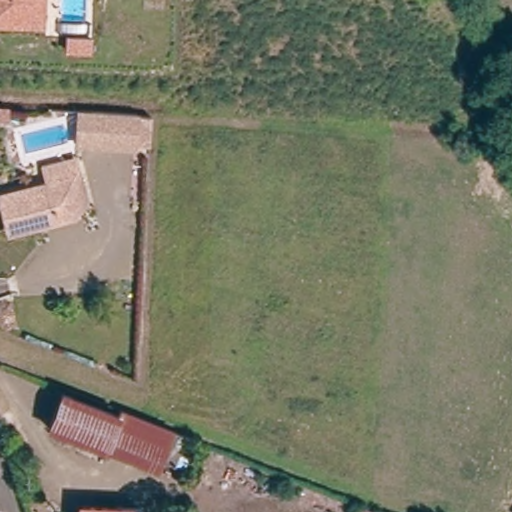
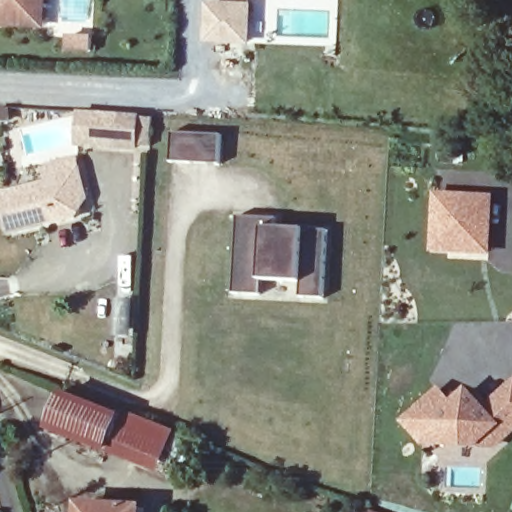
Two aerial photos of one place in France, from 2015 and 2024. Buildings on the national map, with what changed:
unchanged [(0,23),(0,0),(46,0),(45,25),(12,24),(0,23)]
new [(207,6),(247,8),(246,43),(205,41),(207,6)]
unchanged [(140,112),(139,145),(93,142),(80,141),(83,108),(95,109),(124,111),(140,112)]
new [(172,133),(222,137),(220,164),(170,161),(172,133)]
unchanged [(54,183),(50,167),(81,160),(85,176),(90,199),(86,206),(80,217),(15,232),(12,230),(4,195),(54,183)]
new [(433,192),(493,195),(491,254),(430,253),(433,192)]
new [(234,295),(237,217),(276,219),(276,226),(305,228),(326,230),(324,299),(300,298),(302,280),(260,277),(260,295),(234,295)]
new [(452,402),(467,387),(483,404),(512,378),(512,436),(496,450),(480,449),(438,446),(425,450),(400,421),(438,387),(452,402)]
unchanged [(171,433),(157,471),(48,433),(61,388),(171,433)]
unchanged [(185,440),(184,443),(194,447),(189,461),(178,457),(173,468),(161,463),(173,434),(185,440)]
unchanged [(87,512),(87,507),(137,509),(137,512),(87,512)]
unchanged [(353,512),(355,507),(369,512),(353,512)]

